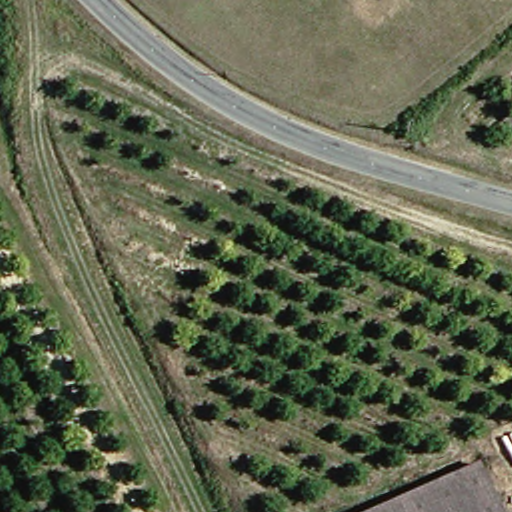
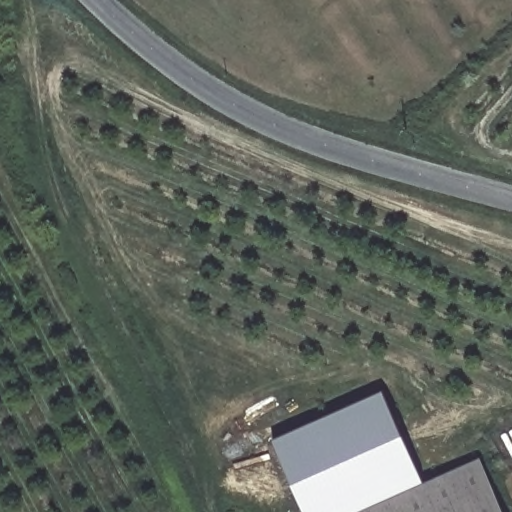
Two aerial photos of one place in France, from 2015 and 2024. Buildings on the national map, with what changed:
new [(368,512),(307,512),(274,440),(385,390),(427,484),(368,512)]
demolished [(471,457),(494,512),(346,512),(471,457)]
new [(427,484),(482,459),(505,512),(368,512),(427,484)]

